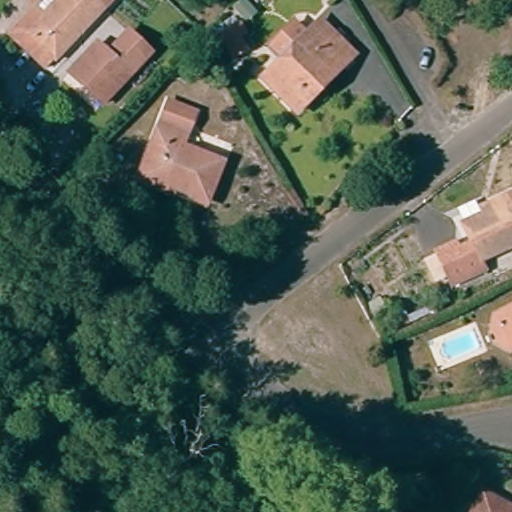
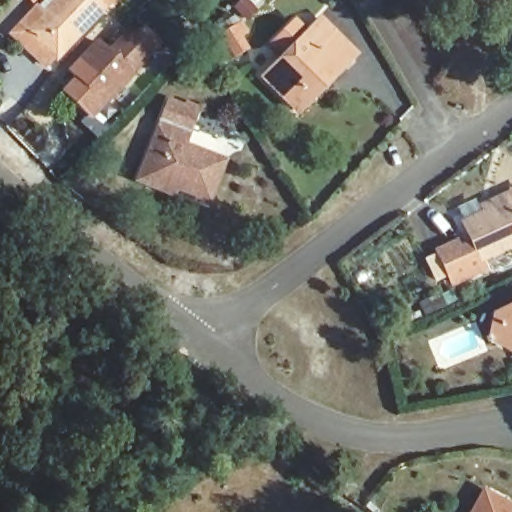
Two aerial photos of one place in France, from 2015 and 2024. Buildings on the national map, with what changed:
unchanged [(56,52),(47,61),(15,29),(39,4),(41,6),(47,0),(109,0),(59,54),(56,52)]
unchanged [(295,113),(260,79),(319,21),(353,55),(295,113)]
unchanged [(101,105),(66,73),(95,43),(106,53),(126,31),(150,53),(101,105)]
unchanged [(136,180),(144,159),(167,102),(194,113),(180,146),(221,162),(204,205),(194,201),(195,197),(173,189),(170,195),(136,180)]
unchanged [(430,261),(441,257),(439,252),(459,243),(461,248),(474,243),(466,224),(487,213),(485,207),(512,194),(512,248),(484,261),(489,271),(454,286),(450,276),(438,281),(430,261)]
unchanged [(493,336),(496,316),(512,308),(512,352),(495,341),(493,336)]
unchanged [(512,502),(512,512),(472,512),(486,488),(512,502)]

